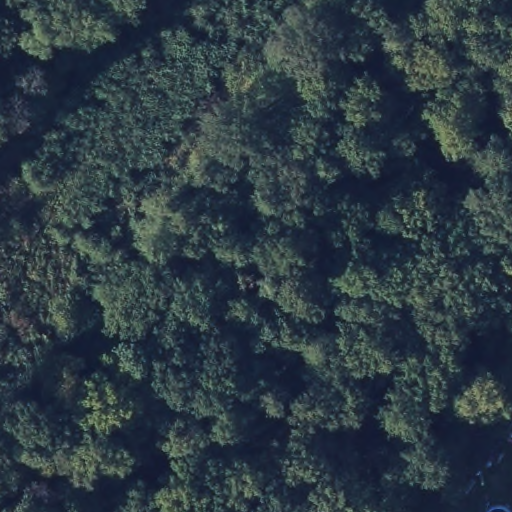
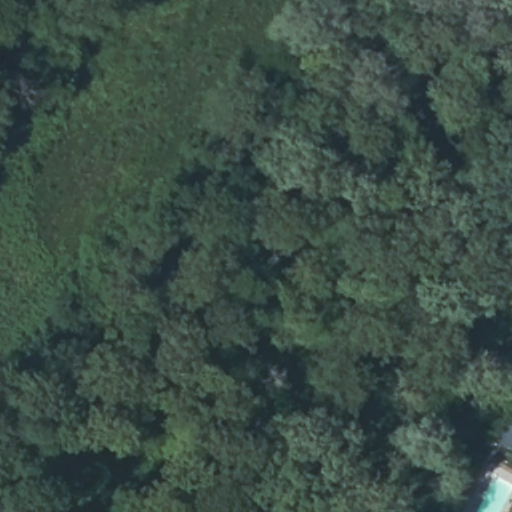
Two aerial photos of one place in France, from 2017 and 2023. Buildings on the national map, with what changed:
[]

